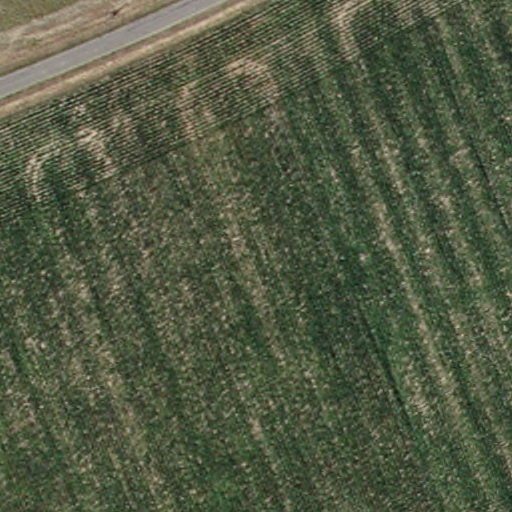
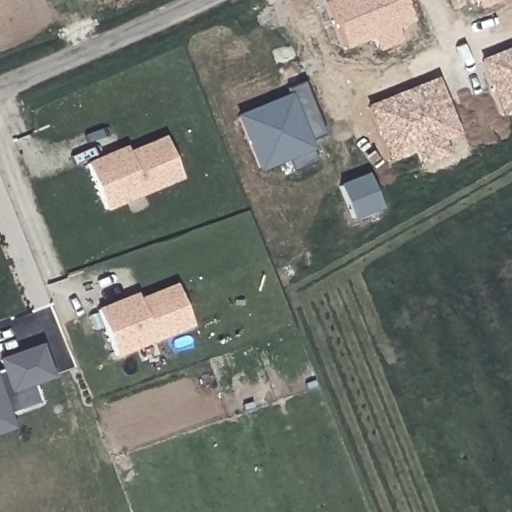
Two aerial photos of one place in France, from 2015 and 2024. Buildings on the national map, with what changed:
new [(410,26),(394,32),(400,46),(375,56),(369,42),(339,54),(318,2),(323,0),(400,0),(410,26)]
new [(455,6),(453,0),(470,0),(455,6)]
new [(500,3),(475,12),(470,0),(499,0),(500,3)]
new [(499,121),(475,63),(512,48),(512,116),(499,121)]
new [(458,138),(442,145),(448,157),(416,170),(411,157),(385,167),(361,109),(434,80),(458,138)]
new [(321,135),(306,142),(287,97),(283,89),(301,82),(321,135)]
new [(310,153),(254,176),(231,120),(287,97),(310,153)]
new [(180,183),(102,216),(80,166),(123,148),(125,152),(160,139),(180,183)]
new [(191,331),(112,362),(91,312),(133,295),(136,301),(173,287),(191,331)]
new [(32,390),(39,408),(6,421),(11,433),(0,437),(0,360),(37,347),(51,383),(32,390)]

